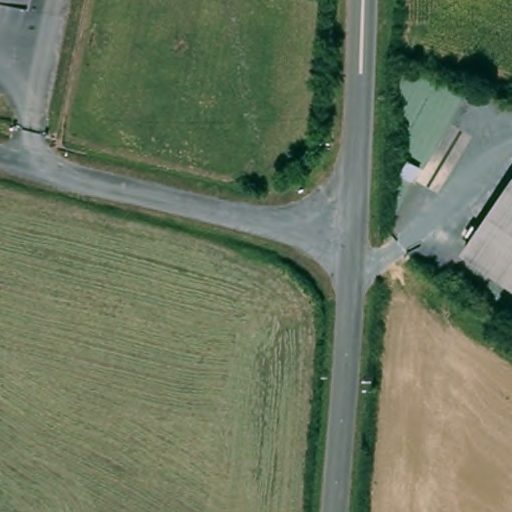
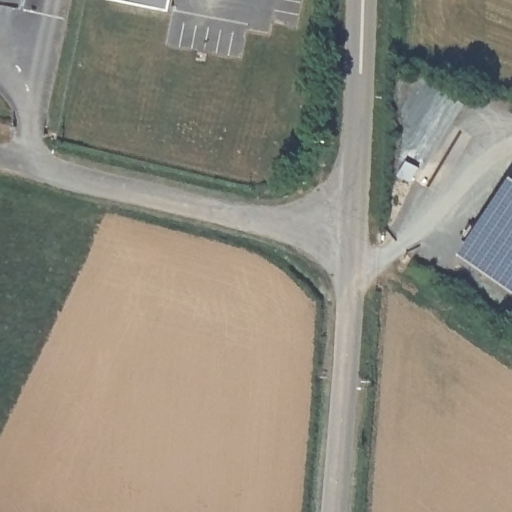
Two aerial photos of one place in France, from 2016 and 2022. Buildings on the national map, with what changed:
unchanged [(3,0),(30,0),(28,5),(3,0)]
new [(175,0),(173,10),(123,0),(175,0)]
unchanged [(512,248),(501,265),(472,247),(512,185),(512,248)]
unchanged [(512,272),(501,265),(512,248),(512,272)]

